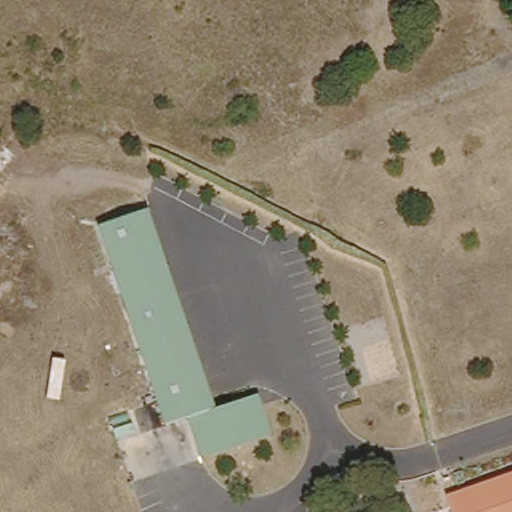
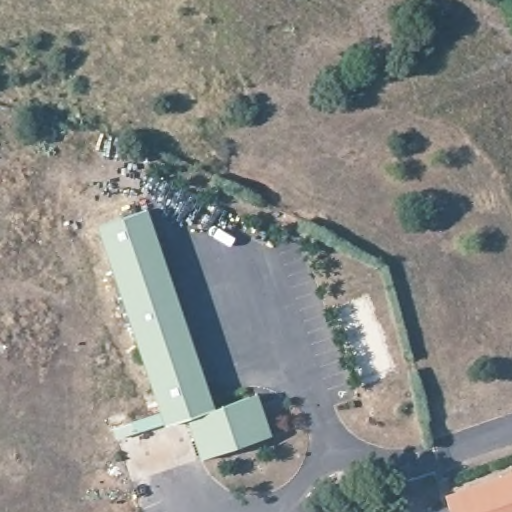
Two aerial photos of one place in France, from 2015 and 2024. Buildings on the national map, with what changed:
unchanged [(277,436),(207,459),(194,418),(171,425),(104,226),(153,209),(220,408),(255,397),(263,394),(267,405),(277,436)]
unchanged [(443,490),(512,466),(512,512),(450,512),(443,490)]

